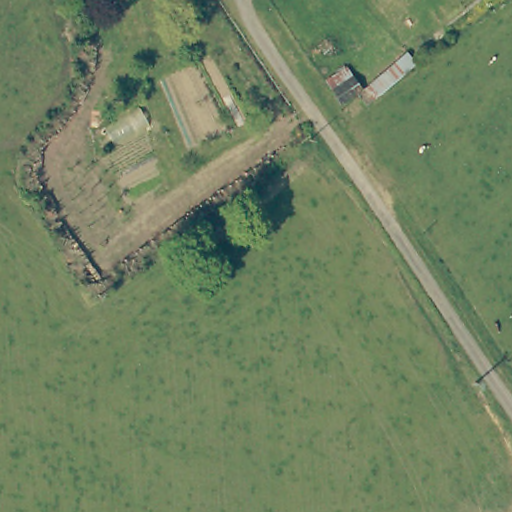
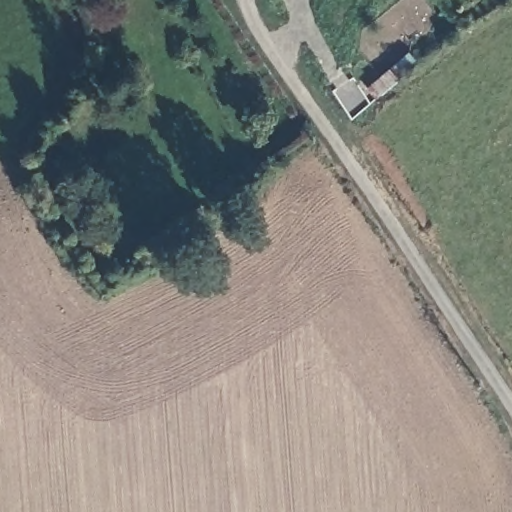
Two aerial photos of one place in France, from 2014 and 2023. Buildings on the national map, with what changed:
unchanged [(376,100),(366,89),(396,64),(406,74),(376,100)]
unchanged [(326,81),(348,67),(364,90),(342,104),(326,81)]

